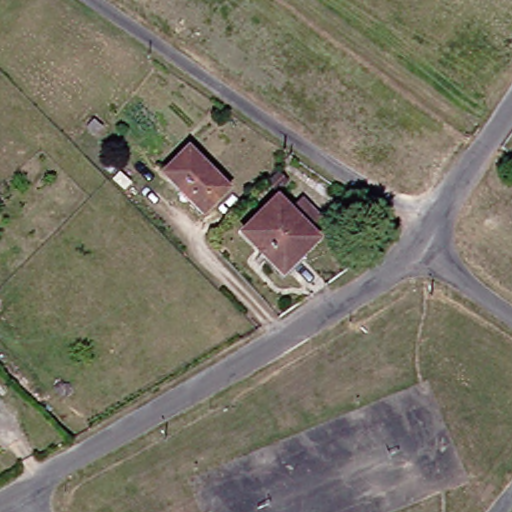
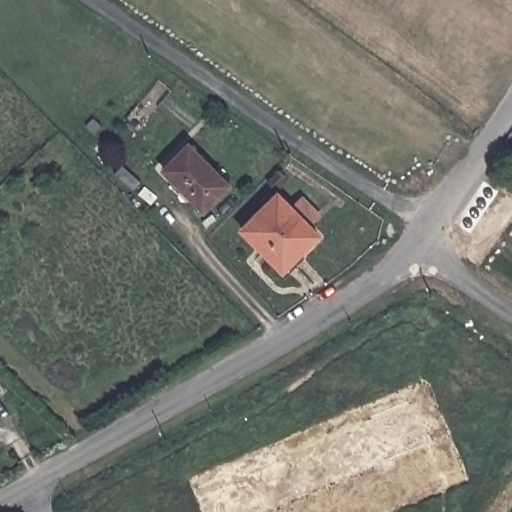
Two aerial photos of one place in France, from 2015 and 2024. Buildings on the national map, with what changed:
unchanged [(233,187),(208,214),(168,175),(192,150),(233,187)]
unchanged [(325,241),(289,275),(248,234),(283,200),(325,241)]
unchanged [(394,225),(403,231),(396,240),(387,234),(394,225)]

